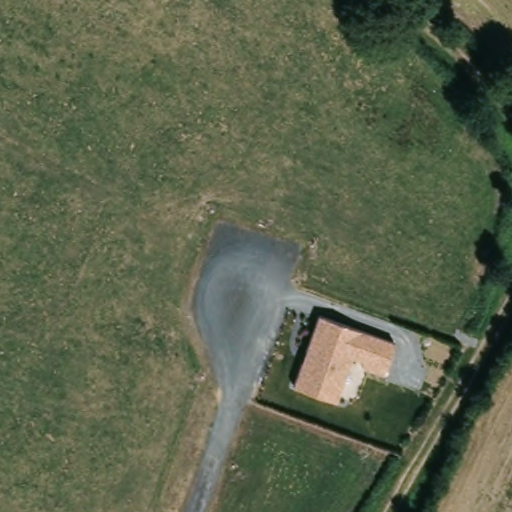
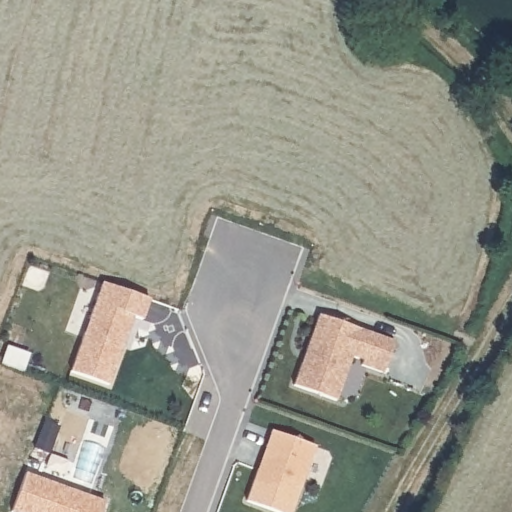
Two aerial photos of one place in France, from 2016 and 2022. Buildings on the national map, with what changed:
new [(69,373),(101,282),(150,299),(142,320),(132,317),(109,386),(69,373)]
unchanged [(395,341),(383,373),(359,364),(360,361),(351,358),(336,401),(292,384),(317,315),(395,341)]
new [(315,446),(292,512),(272,512),(245,501),(271,431),(315,446)]

